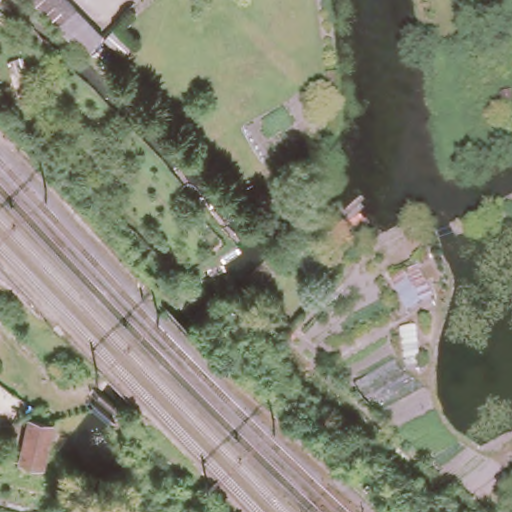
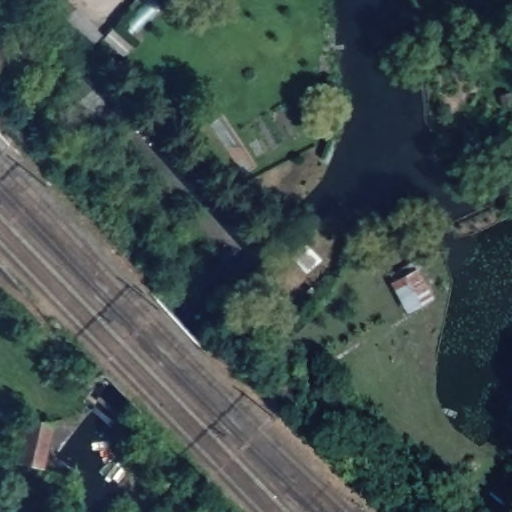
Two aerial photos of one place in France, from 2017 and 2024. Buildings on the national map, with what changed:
unchanged [(61,0),(69,8),(50,28),(23,0),(61,0)]
unchanged [(416,271),(434,299),(409,309),(395,281),(416,271)]
unchanged [(36,417),(27,461),(1,455),(11,411),(36,417)]

